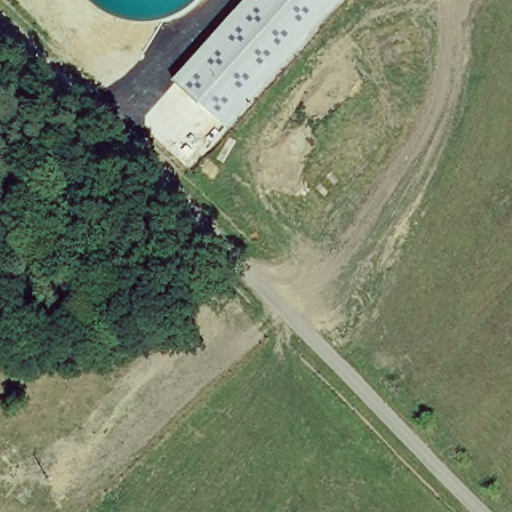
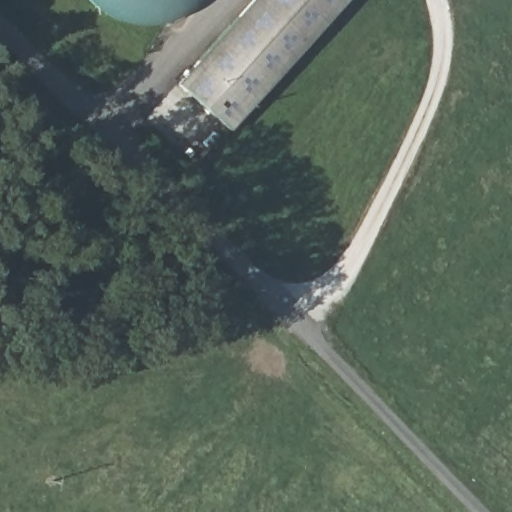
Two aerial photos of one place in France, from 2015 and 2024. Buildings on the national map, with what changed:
unchanged [(251,0),(346,0),(230,129),(178,81),(251,0)]

